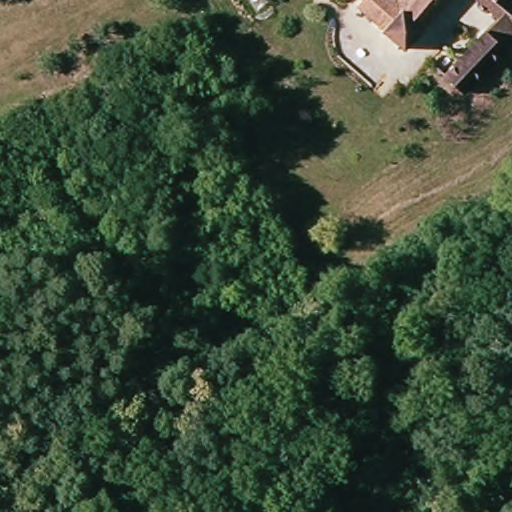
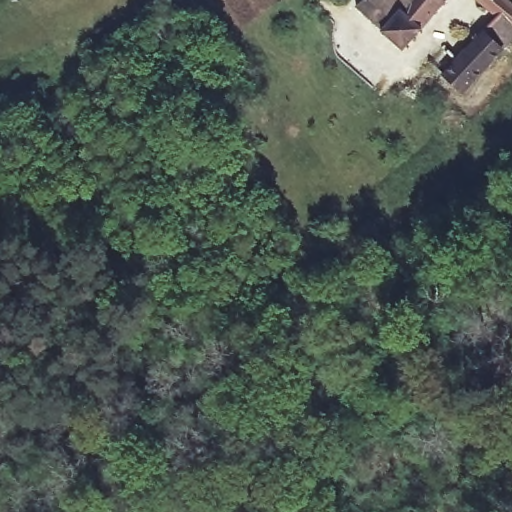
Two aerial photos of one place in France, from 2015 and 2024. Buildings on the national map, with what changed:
unchanged [(359,5),(364,0),(447,0),(400,50),(381,32),(384,28),(359,5)]
unchanged [(446,74),(499,18),(480,0),(506,0),(512,5),(512,44),(465,93),(446,74)]
unchanged [(389,118),(403,105),(426,130),(412,144),(389,118)]
unchanged [(399,271),(389,255),(412,239),(423,254),(399,271)]

